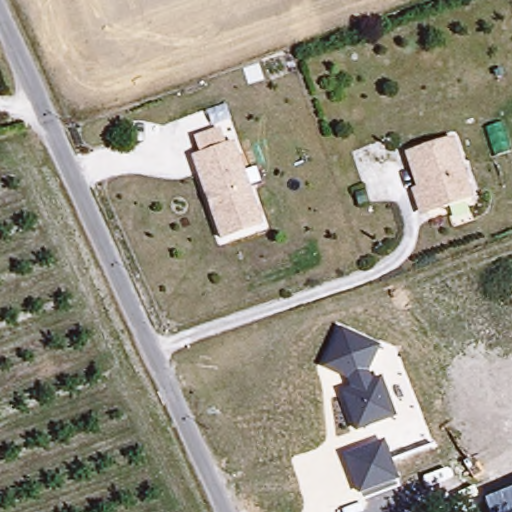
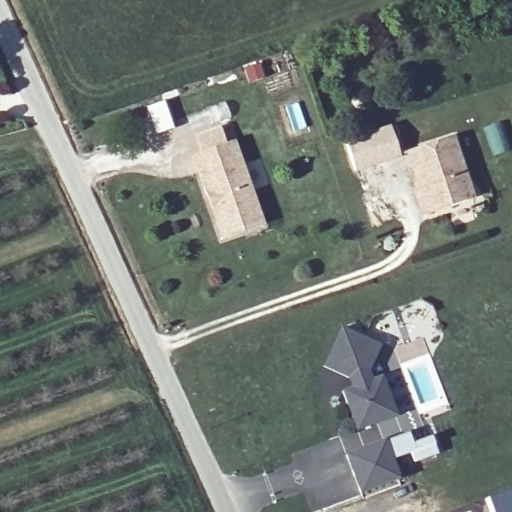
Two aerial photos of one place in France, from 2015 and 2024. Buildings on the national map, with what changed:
new [(401,156),(355,170),(347,142),(392,129),(401,156)]
unchanged [(190,152),(230,138),(258,223),(219,236),(207,204),(203,191),(190,152)]
unchanged [(471,202),(425,215),(407,152),(453,139),(471,202)]
unchanged [(340,392),(351,388),(348,377),(322,367),(338,327),(381,345),(368,374),(371,380),(382,376),(397,416),(355,433),(340,392)]
unchanged [(398,480),(359,495),(346,454),(383,440),(398,480)]
unchanged [(488,512),(483,500),(512,489),(512,512),(488,512)]

